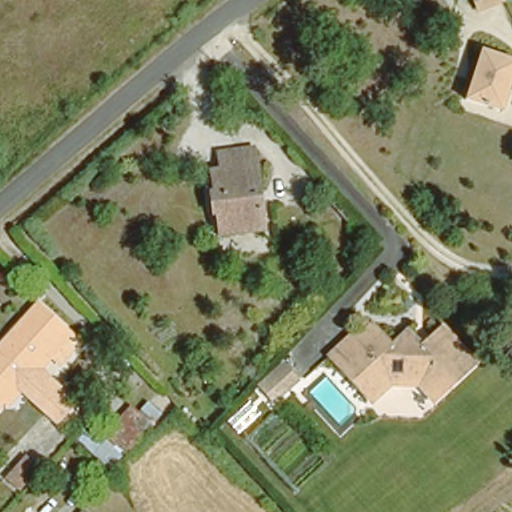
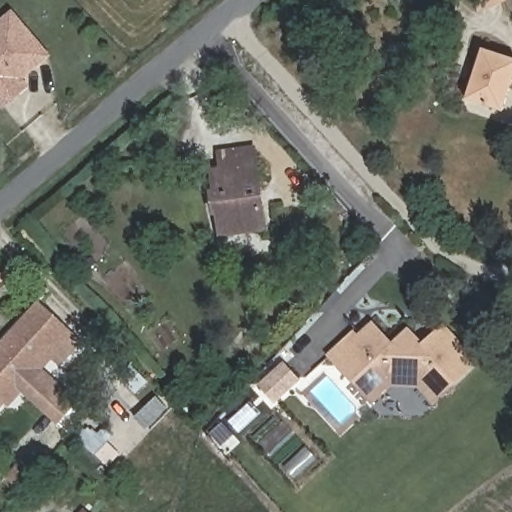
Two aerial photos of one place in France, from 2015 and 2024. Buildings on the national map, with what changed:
unchanged [(479,14),(473,0),(508,0),(509,2),(479,14)]
new [(1,109),(0,107),(0,20),(11,10),(50,57),(23,80),(29,87),(1,109)]
unchanged [(512,56),(512,80),(503,104),(466,90),(482,45),(512,56)]
unchanged [(256,153),(267,229),(224,235),(222,214),(216,214),(214,195),(218,194),(216,172),(226,172),(224,156),(256,153)]
unchanged [(57,417),(53,413),(29,390),(26,387),(22,383),(21,382),(20,382),(15,377),(1,392),(0,392),(0,337),(32,306),(38,300),(65,325),(67,327),(79,340),(57,362),(44,348),(34,358),(76,398),(70,405),(62,413),(57,417)]
unchanged [(429,397),(417,383),(385,382),(367,397),(326,353),(349,333),(353,337),(368,323),(385,342),(392,342),(392,334),(404,325),(413,335),(413,342),(420,342),(440,327),(471,361),(429,397)]
unchanged [(288,373),(264,395),(250,379),(273,357),(288,373)]
new [(15,377),(20,382),(21,382),(22,383),(26,387),(8,407),(4,403),(0,408),(0,392),(1,392),(15,377)]
unchanged [(95,457),(94,457),(90,453),(85,449),(94,441),(100,447),(114,435),(110,428),(132,408),(137,415),(155,398),(168,410),(108,468),(95,457)]
unchanged [(32,463),(14,482),(4,472),(22,454),(32,463)]

